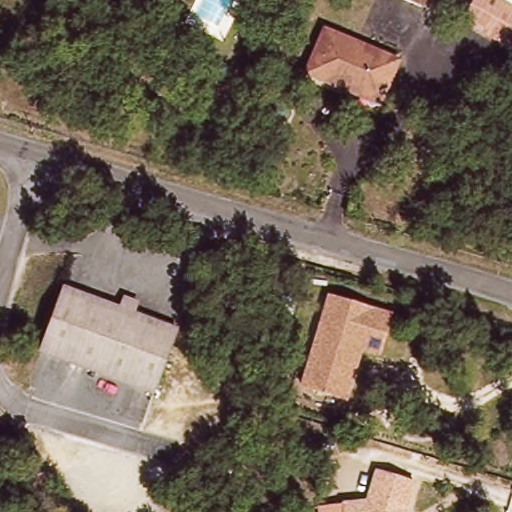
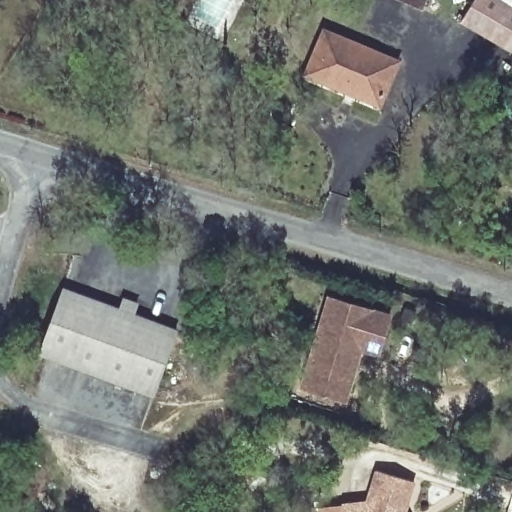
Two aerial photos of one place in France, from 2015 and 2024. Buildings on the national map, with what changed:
unchanged [(472,0),(512,0),(512,41),(464,15),(472,0)]
unchanged [(339,88),(302,72),(323,25),(395,56),(379,93),(375,103),(339,88)]
unchanged [(59,292),(173,328),(154,393),(39,356),(59,292)]
unchanged [(378,354),(360,349),(346,401),(302,389),(327,298),(388,315),(378,354)]
unchanged [(411,481),(407,512),(341,512),(341,505),(366,504),(372,475),(411,481)]

